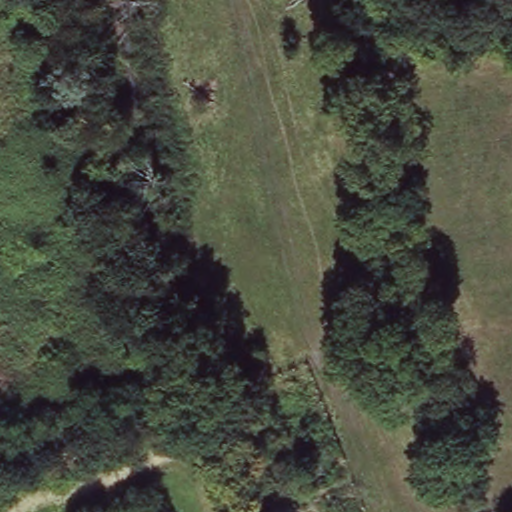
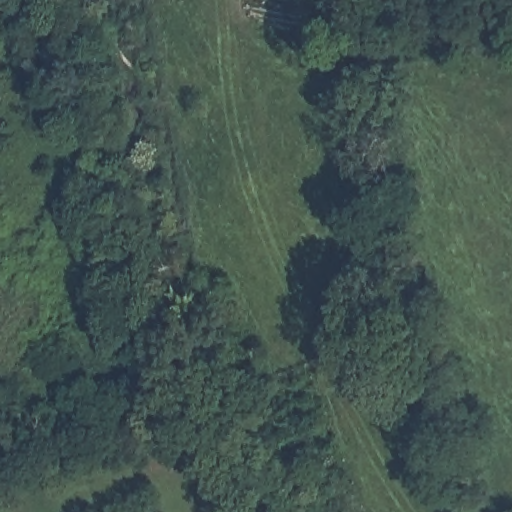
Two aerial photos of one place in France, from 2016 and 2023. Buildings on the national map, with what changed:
unchanged [(352,276),(373,271),(377,290),(355,294),(352,276)]
unchanged [(194,312),(209,309),(212,331),(197,333),(194,312)]

